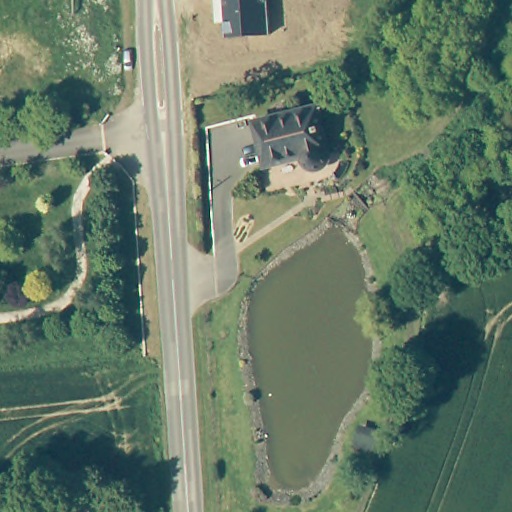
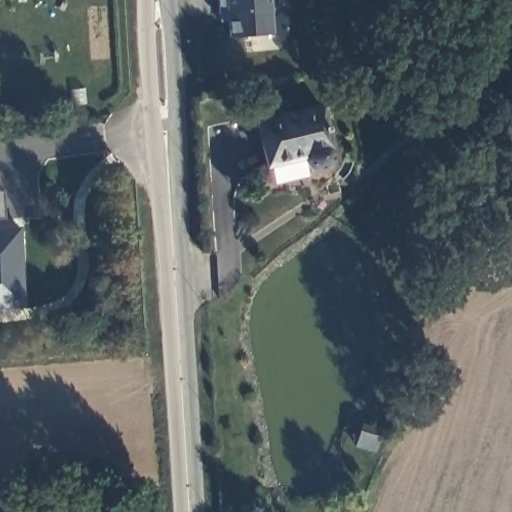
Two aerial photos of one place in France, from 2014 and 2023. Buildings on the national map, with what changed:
unchanged [(226,23),(218,24),(217,0),(269,0),(272,35),(228,38),(226,23)]
unchanged [(264,115),(322,101),(335,155),(330,163),(322,165),(317,163),(309,153),(274,160),(264,115)]
new [(4,218),(0,218),(0,192),(2,192),(4,218)]
new [(21,227),(24,308),(0,309),(0,228),(21,227)]
unchanged [(57,469),(80,479),(66,512),(56,512),(42,506),(57,469)]

